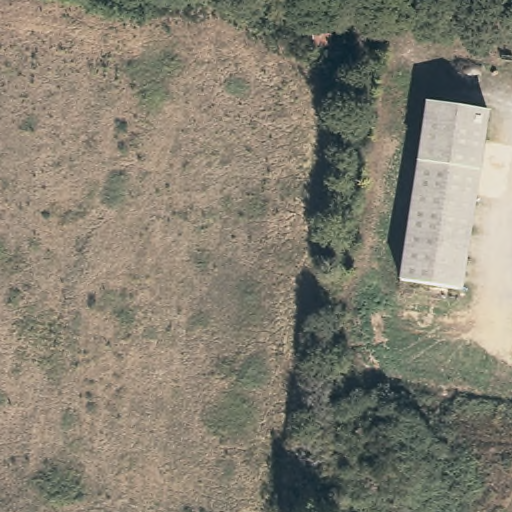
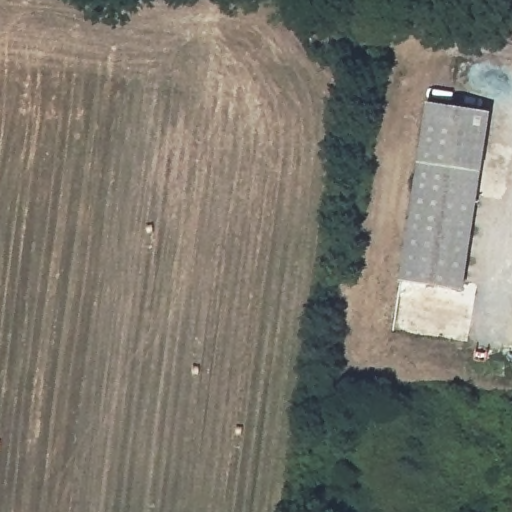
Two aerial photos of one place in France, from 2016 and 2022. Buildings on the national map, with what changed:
unchanged [(426,101),(487,109),(480,170),(420,163),(426,101)]
unchanged [(480,170),(465,289),(407,282),(420,163),(480,170)]

